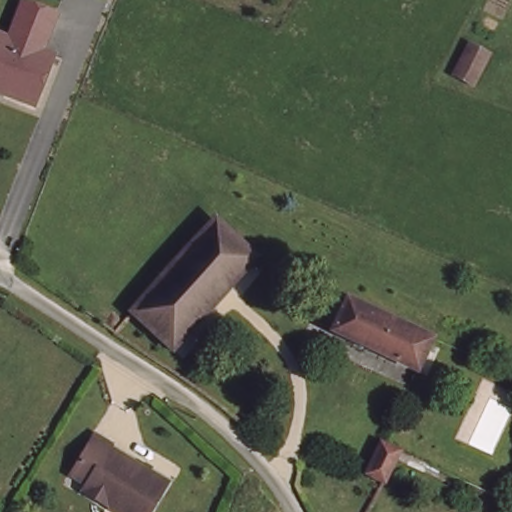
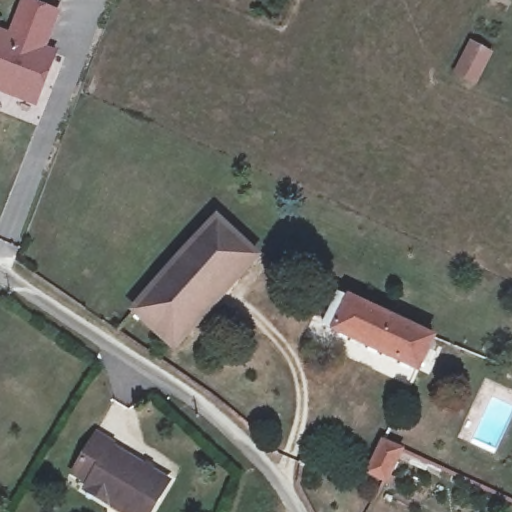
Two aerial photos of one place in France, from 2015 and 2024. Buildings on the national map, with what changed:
unchanged [(38,96),(0,82),(0,24),(10,27),(22,0),(50,0),(58,3),(44,40),(58,45),(38,96)]
unchanged [(167,345),(125,316),(225,202),(251,226),(266,239),(167,345)]
unchanged [(421,370),(327,326),(342,292),(349,295),(437,336),(421,370)]
unchanged [(112,496),(87,481),(91,473),(75,465),(97,426),(173,471),(148,508),(146,512),(139,512),(112,496)]
unchanged [(366,471),(390,427),(406,436),(381,479),(366,471)]

